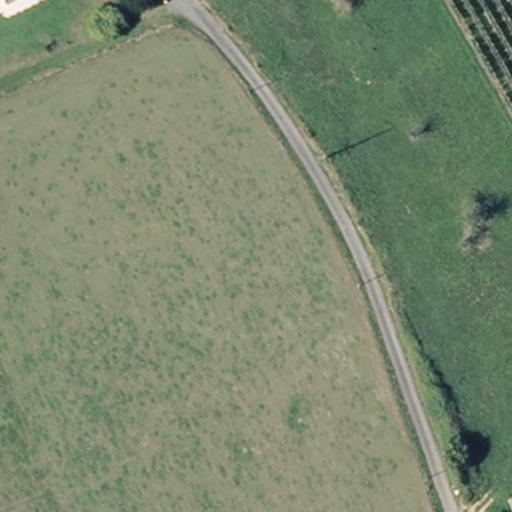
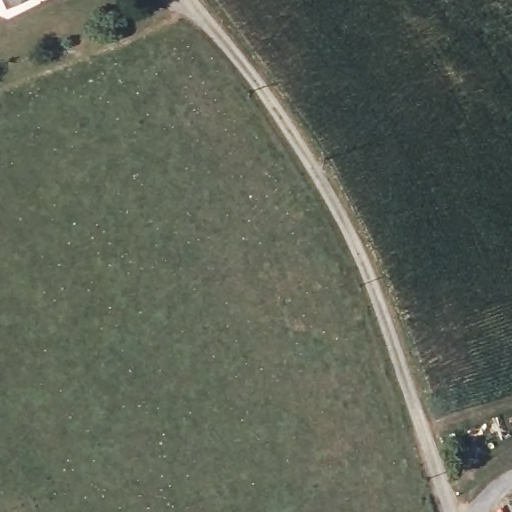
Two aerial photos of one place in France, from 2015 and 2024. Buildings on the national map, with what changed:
unchanged [(512,503),(512,505),(511,503),(512,503)]

